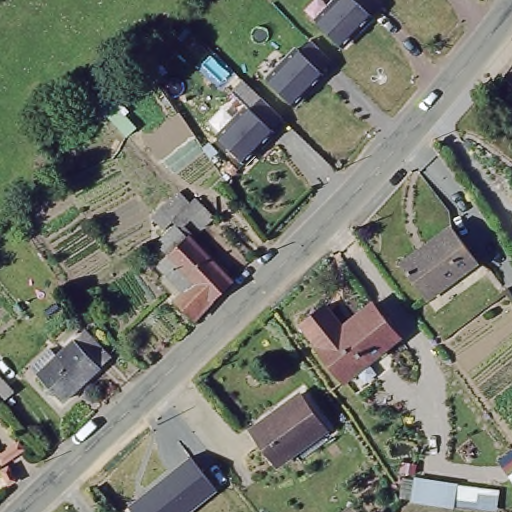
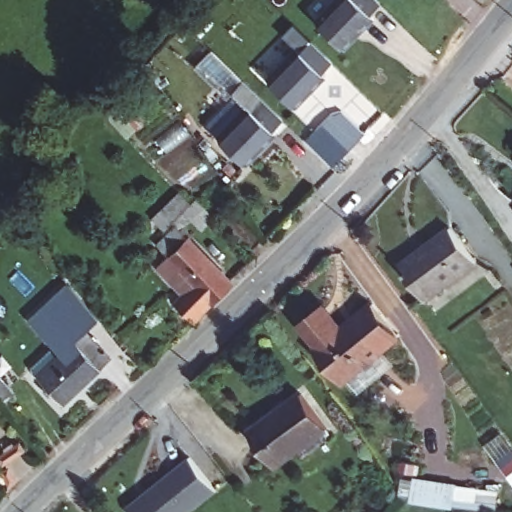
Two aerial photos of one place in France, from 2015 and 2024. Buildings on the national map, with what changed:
unchanged [(380,0),(382,1),(371,12),(374,15),(345,47),(317,21),(338,0),(380,0)]
unchanged [(288,45),(291,47),(302,37),(322,57),(312,68),(315,71),(285,102),(258,76),(288,45)]
unchanged [(238,101),(241,103),(252,92),(272,112),(262,123),(265,125),(236,157),(209,132),(238,101)]
new [(307,138),(333,111),(341,109),(365,131),(333,164),(307,138)]
unchanged [(198,219),(189,227),(182,220),(179,216),(164,230),(152,217),(179,191),(191,204),(198,198),(200,195),(220,218),(217,221),(207,229),(198,219)]
unchanged [(169,256),(157,242),(179,223),(235,283),(194,322),(174,300),(181,294),(157,267),(169,256)]
unchanged [(451,223),(477,258),(425,296),(400,259),(451,223)]
new [(27,318),(66,281),(95,314),(86,324),(59,350),(51,342),(27,318)]
unchanged [(325,302),(344,325),(373,301),(399,336),(344,377),(317,343),(322,340),(304,319),(325,302)]
unchanged [(51,342),(59,350),(86,324),(111,351),(66,397),(59,389),(55,393),(47,386),(51,382),(32,362),(51,342)]
unchanged [(3,400),(0,396),(0,380),(11,393),(3,400)]
unchanged [(300,390),(325,424),(274,460),(250,426),(300,390)]
unchanged [(191,457),(217,490),(189,512),(134,512),(130,505),(191,457)]
unchanged [(412,475),(454,478),(452,500),(410,496),(412,475)]

